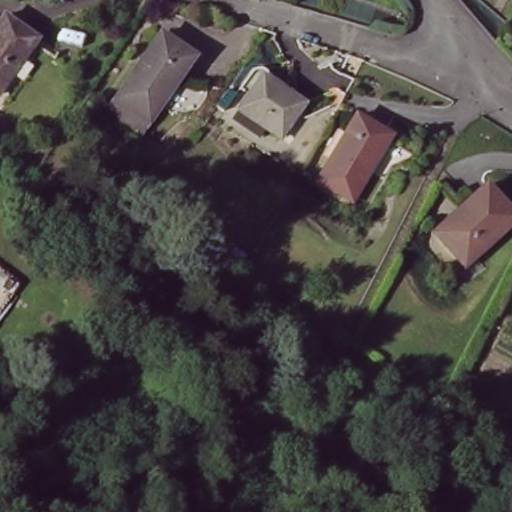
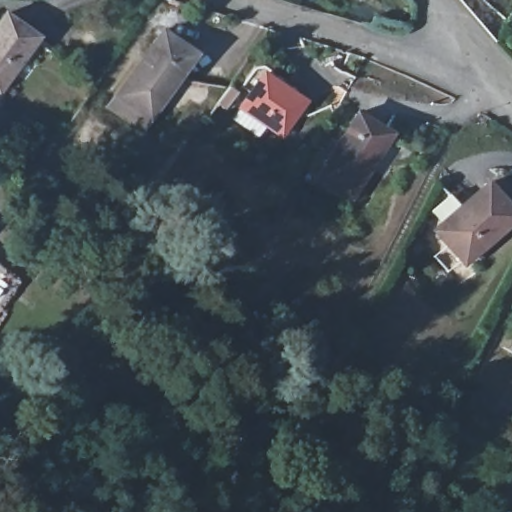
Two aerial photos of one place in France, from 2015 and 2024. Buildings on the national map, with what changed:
unchanged [(0,91),(0,21),(4,15),(38,37),(0,91)]
unchanged [(194,55),(152,119),(118,95),(161,32),(194,55)]
unchanged [(304,102),(281,135),(266,126),(261,135),(234,118),(263,75),(304,102)]
unchanged [(387,131),(366,167),(371,170),(354,199),(319,179),(358,115),(387,131)]
unchanged [(512,211),(512,223),(468,263),(437,230),(488,184),(512,211)]
unchanged [(153,391),(146,412),(50,383),(56,362),(153,391)]

